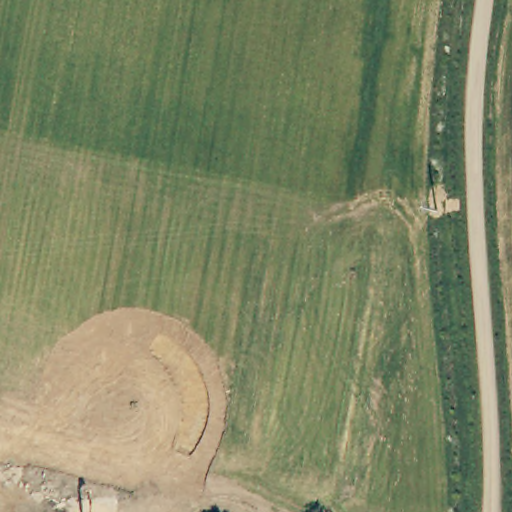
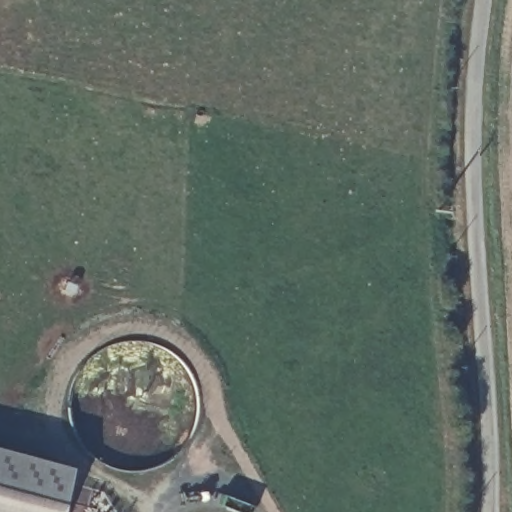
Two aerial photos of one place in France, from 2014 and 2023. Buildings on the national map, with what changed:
new [(0,448),(68,467),(56,512),(0,512),(0,448)]

